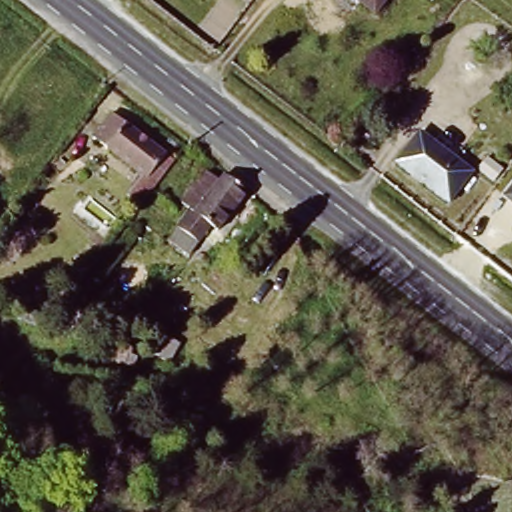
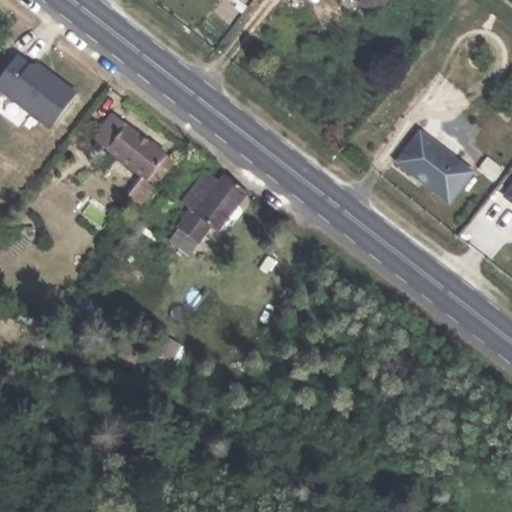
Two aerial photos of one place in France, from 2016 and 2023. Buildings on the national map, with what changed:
unchanged [(352,0),(387,0),(372,16),(352,0)]
unchanged [(416,0),(423,0),(437,10),(426,25),(407,12),(416,0)]
new [(52,129),(0,90),(0,81),(20,53),(34,64),(43,64),(80,92),(52,129)]
unchanged [(138,200),(125,190),(138,174),(93,138),(110,116),(170,161),(138,200)]
unchanged [(443,200),(393,161),(417,131),(467,169),(443,200)]
unchanged [(217,229),(210,224),(188,250),(168,235),(190,207),(181,200),(205,171),(218,181),(222,176),(246,195),(217,229)]
unchanged [(512,182),(512,200),(503,193),(512,182)]

